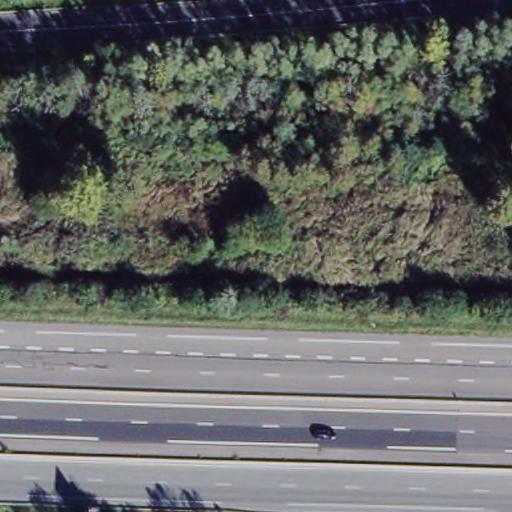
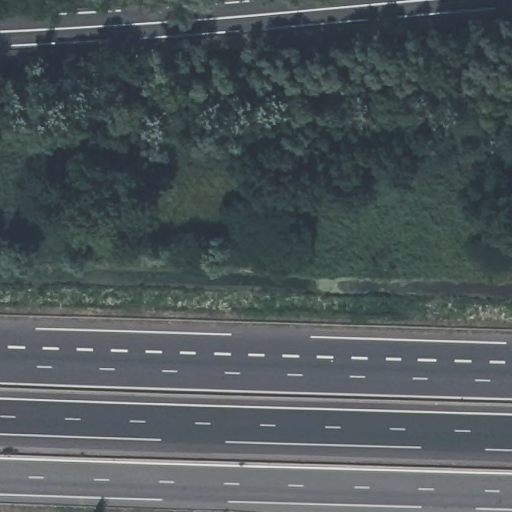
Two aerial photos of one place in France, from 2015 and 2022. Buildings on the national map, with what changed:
[]

